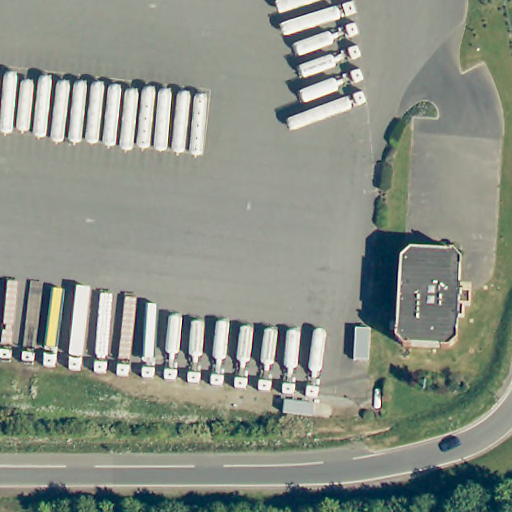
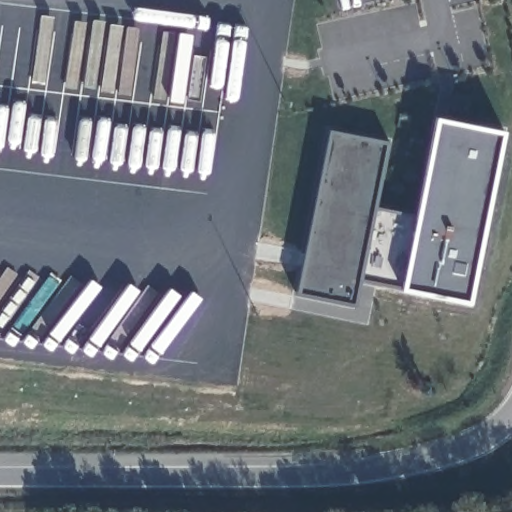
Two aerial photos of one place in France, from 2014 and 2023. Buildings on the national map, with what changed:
new [(373,206),(414,217),(436,116),(503,130),(469,300),(400,285),(360,277),(354,303),(295,293),(327,129),(386,140),(373,206)]
demolished [(453,250),(465,262),(464,289),(474,290),(475,305),(467,305),(467,318),(462,317),(463,340),(453,350),(407,348),(400,341),(400,333),(392,333),(392,324),(401,324),(404,259),(415,248),(453,250)]

